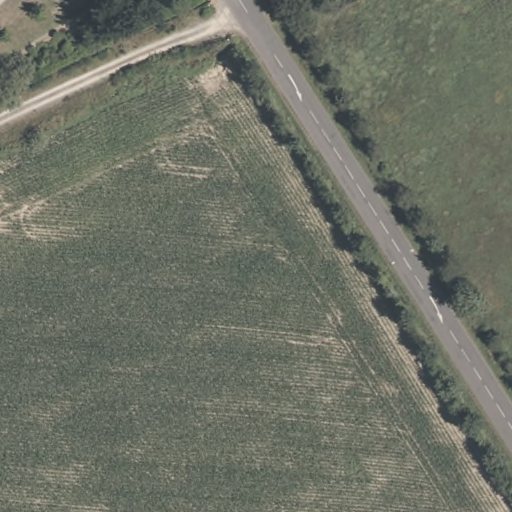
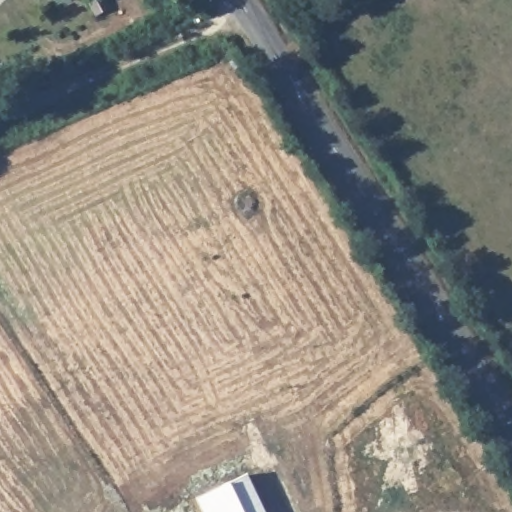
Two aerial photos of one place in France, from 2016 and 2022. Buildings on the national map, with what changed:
new [(246,474),(264,512),(201,512),(195,498),(246,474)]

